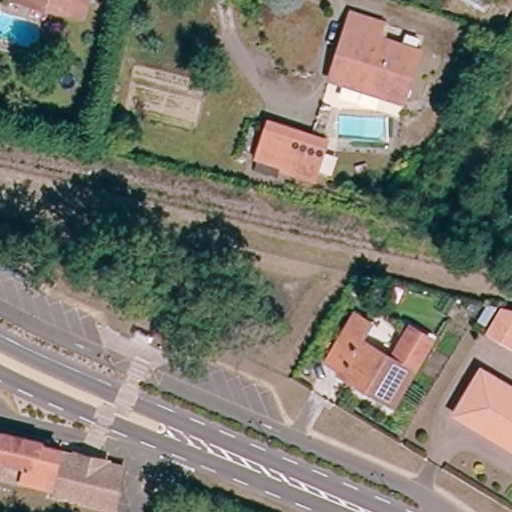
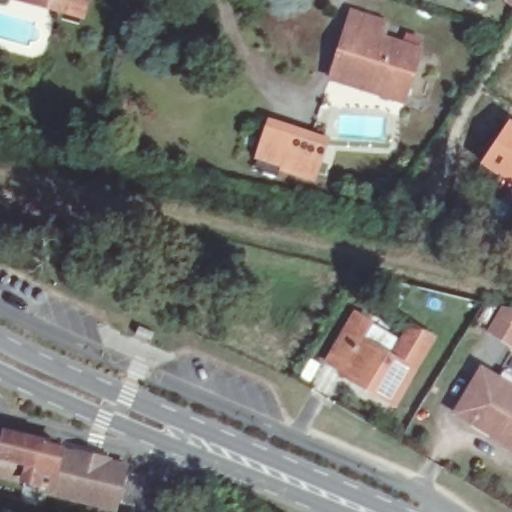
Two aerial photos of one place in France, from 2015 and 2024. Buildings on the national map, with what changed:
unchanged [(76,19),(53,13),(7,0),(81,0),(76,19)]
unchanged [(345,25),(350,10),(380,20),(376,35),(419,47),(402,99),(380,92),(329,76),(345,25)]
new [(512,189),(475,167),(508,123),(512,125),(512,189)]
unchanged [(320,144),(310,173),(253,154),(263,125),(320,144)]
unchanged [(512,339),(509,344),(486,330),(500,306),(512,309),(512,339)]
unchanged [(335,378),(336,375),(323,366),(342,332),(350,319),(365,328),(358,340),(355,346),(385,365),(406,333),(425,344),(386,408),(367,397),(354,389),(335,378)]
unchanged [(140,328),(155,334),(151,344),(135,339),(140,328)]
unchanged [(482,369),(512,387),(512,444),(473,420),(471,423),(456,413),(482,369)]
unchanged [(5,430),(42,439),(41,442),(62,447),(62,450),(80,455),(81,452),(102,457),(107,458),(107,459),(106,461),(125,466),(116,507),(86,499),(85,502),(80,498),(51,491),(52,486),(0,473),(0,462),(1,457),(0,456),(0,452),(0,450),(0,429),(5,431),(5,430)]

